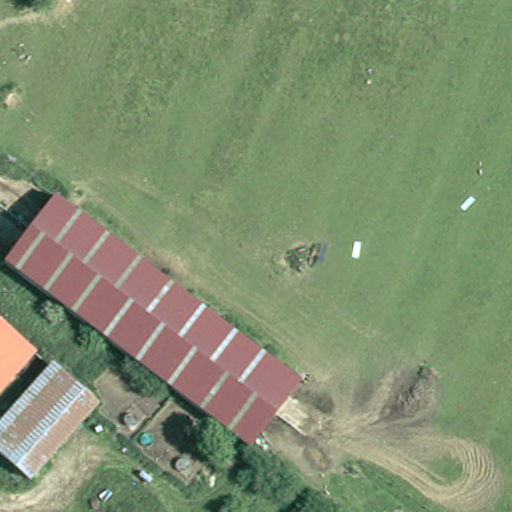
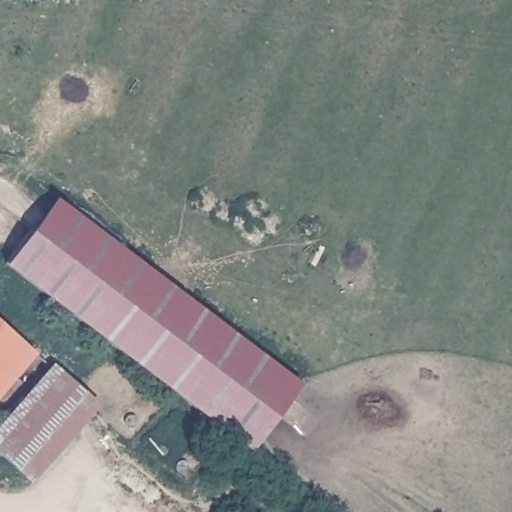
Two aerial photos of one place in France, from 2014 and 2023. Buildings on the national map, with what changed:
unchanged [(300,382),(250,448),(4,262),(55,197),(300,382)]
unchanged [(0,317),(25,340),(0,367),(0,317)]
unchanged [(37,351),(0,392),(0,367),(25,340),(37,351)]
unchanged [(100,403),(33,479),(0,450),(0,430),(57,366),(100,403)]

